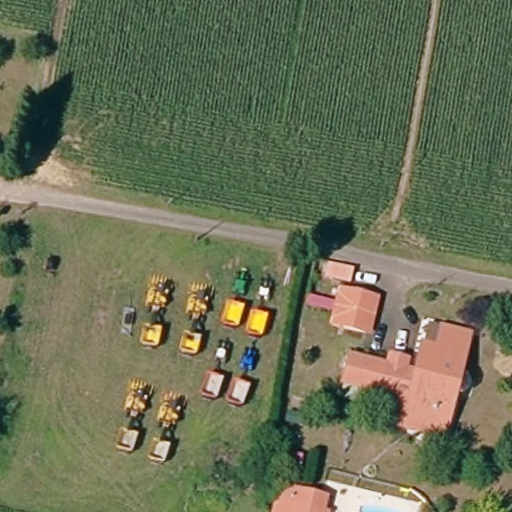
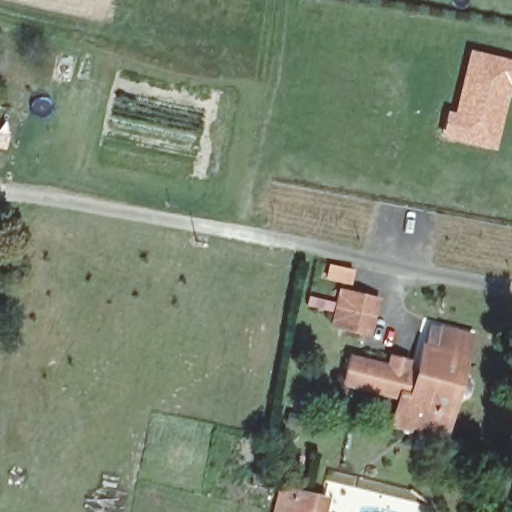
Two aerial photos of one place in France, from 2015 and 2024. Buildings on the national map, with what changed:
new [(452,111),(468,48),(512,60),(512,94),(493,151),(439,138),(445,110),(452,111)]
unchanged [(379,299),(371,332),(337,323),(346,290),(379,299)]
unchanged [(396,431),(403,397),(347,386),(352,358),(420,373),(432,323),(472,332),(462,375),(469,379),(474,387),(472,394),(454,404),(450,419),(447,432),(445,442),(424,437),(405,433),(396,431)]
unchanged [(282,483),(296,488),(331,497),(327,512),(274,512),(282,483)]

